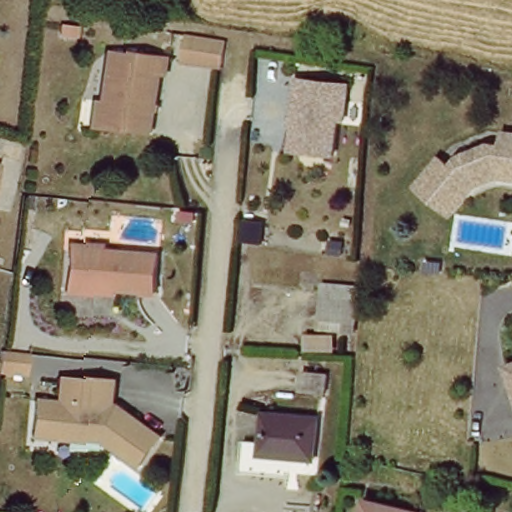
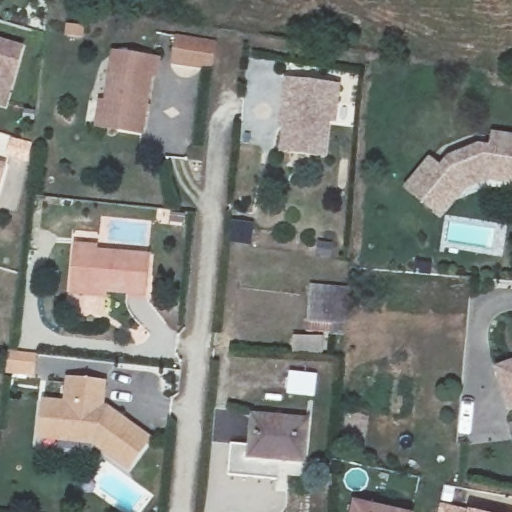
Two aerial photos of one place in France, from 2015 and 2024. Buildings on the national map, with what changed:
unchanged [(209,41),(218,43),(216,68),(206,66),(205,69),(174,64),(178,37),(209,41)]
new [(27,46),(10,111),(0,109),(0,38),(27,46)]
unchanged [(106,100),(112,101),(119,51),(164,58),(161,75),(156,74),(147,133),(108,127),(103,126),(106,100)]
unchanged [(285,156),(291,104),(288,104),(290,85),(342,90),(340,109),(338,126),(332,126),(328,161),(285,156)]
unchanged [(410,185),(434,156),(445,165),(453,155),(483,144),(494,145),(497,131),(512,134),(512,179),(491,176),(468,185),(444,214),(437,208),(410,185)]
unchanged [(11,171),(0,205),(0,168),(11,171)]
unchanged [(77,292),(77,287),(81,249),(81,244),(102,246),(102,251),(154,255),(151,294),(112,290),(111,295),(77,292)]
unchanged [(359,290),(353,339),(332,339),(329,359),(297,356),(298,334),(310,334),(313,285),(359,290)]
unchanged [(13,369),(15,349),(41,352),(39,372),(13,369)]
unchanged [(512,368),(512,407),(500,372),(512,368)]
unchanged [(43,432),(45,404),(68,406),(70,382),(106,385),(103,409),(108,410),(116,415),(152,441),(131,470),(95,445),(76,443),(42,439),(43,432)]
unchanged [(232,473),(235,439),(256,441),(257,436),(260,410),(313,416),(314,416),(308,456),(281,453),(278,478),(232,473)]
unchanged [(359,511),(366,512),(358,512),(359,511)]

